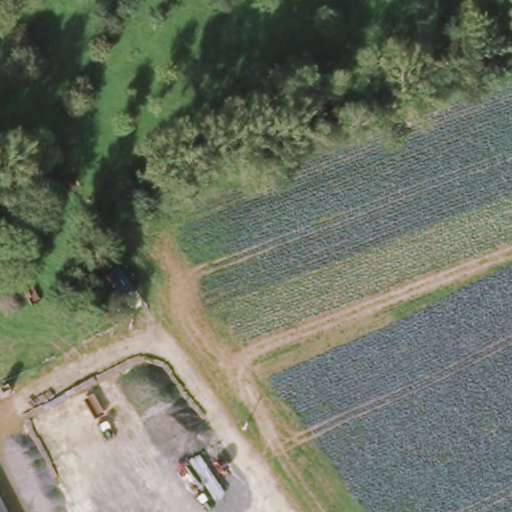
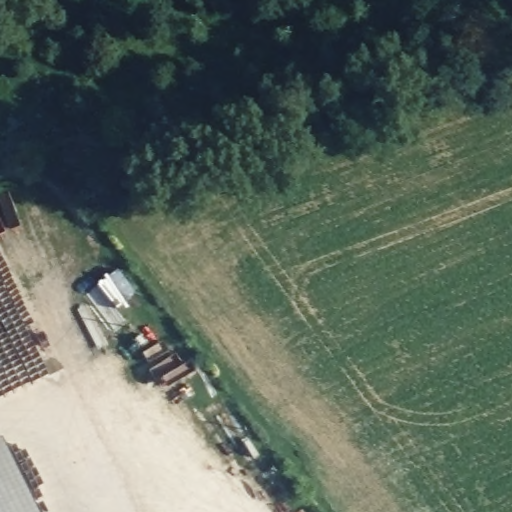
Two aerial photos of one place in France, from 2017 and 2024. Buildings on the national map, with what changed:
new [(0,512),(0,441),(3,440),(39,512),(0,512)]

